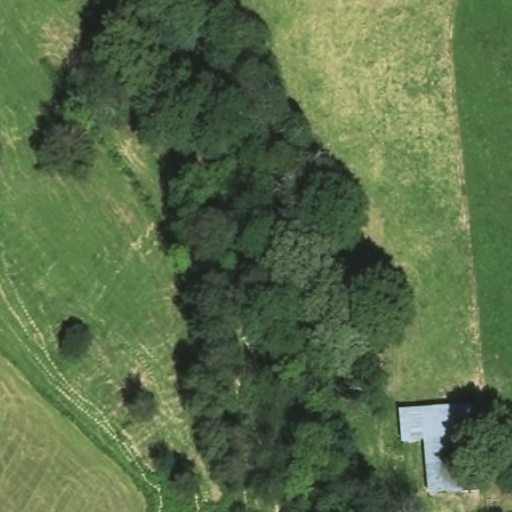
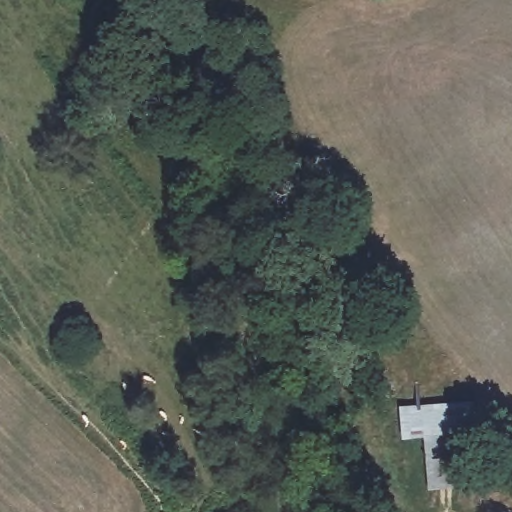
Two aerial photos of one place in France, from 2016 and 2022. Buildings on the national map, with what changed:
unchanged [(468,399),(471,433),(461,434),(467,484),(425,490),(420,439),(398,440),(395,406),(468,399)]

